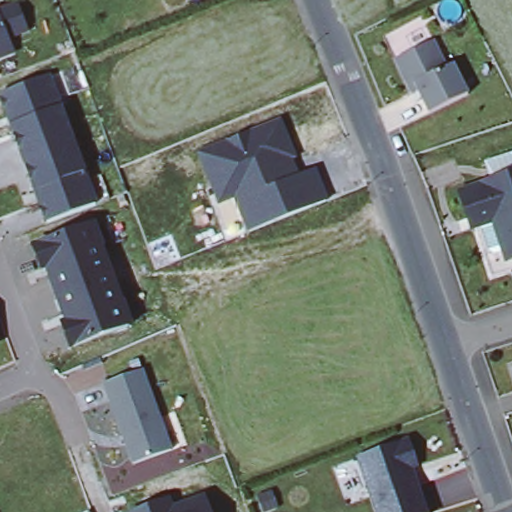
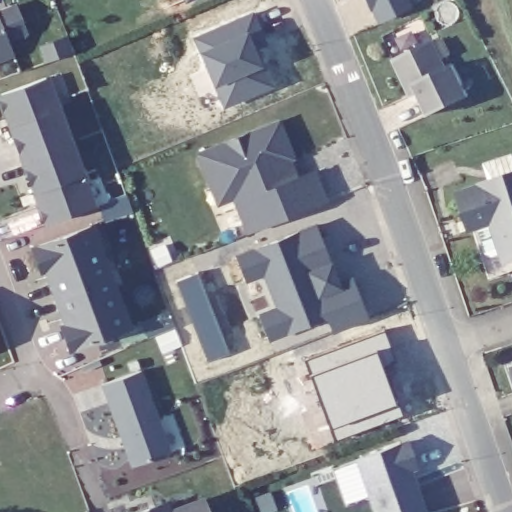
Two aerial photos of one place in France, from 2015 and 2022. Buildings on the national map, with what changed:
unchanged [(185,1),(185,0),(187,0),(185,1)]
new [(413,10),(380,23),(374,11),(371,12),(366,0),(409,0),(413,10)]
unchanged [(21,45),(0,53),(0,7),(6,5),(21,45)]
new [(255,14),(265,43),(255,46),(263,67),(273,63),(282,86),(225,110),(195,39),(255,14)]
unchanged [(402,88),(388,60),(395,57),(427,42),(440,68),(447,65),(461,96),(422,114),(412,93),(406,96),(402,88)]
unchanged [(11,128),(15,126),(11,116),(6,113),(0,98),(0,93),(60,71),(68,95),(55,100),(70,141),(22,158),(11,128)]
unchanged [(237,198),(216,205),(193,151),(286,118),(304,173),(317,167),(329,201),(250,231),(237,198)]
unchanged [(70,141),(85,181),(99,176),(108,199),(47,222),(40,203),(43,197),(39,187),(34,189),(22,158),(70,141)]
unchanged [(490,244),(482,218),(475,220),(466,193),(512,179),(512,259),(511,260),(509,253),(499,256),(490,244)]
unchanged [(56,294),(55,294),(45,267),(40,269),(32,246),(91,224),(110,274),(56,294)]
new [(317,227),(330,265),(333,264),(341,285),(353,280),(368,322),(333,335),(328,321),(270,345),(260,315),(276,309),(265,277),(246,284),(237,256),(317,227)]
new [(197,271),(228,352),(208,360),(177,279),(197,271)]
unchanged [(56,294),(110,274),(127,325),(69,346),(60,324),(65,322),(55,294),(56,294)]
new [(385,333),(391,351),(377,355),(396,410),(399,409),(403,419),(336,444),(306,363),(385,333)]
unchanged [(170,450),(131,464),(102,382),(140,369),(170,450)]
unchanged [(414,460),(410,469),(426,512),(377,512),(357,458),(385,448),(400,442),(409,446),(414,460)]
unchanged [(206,512),(170,512),(201,500),(206,512)]
unchanged [(166,503),(170,512),(141,512),(149,509),(166,503)]

